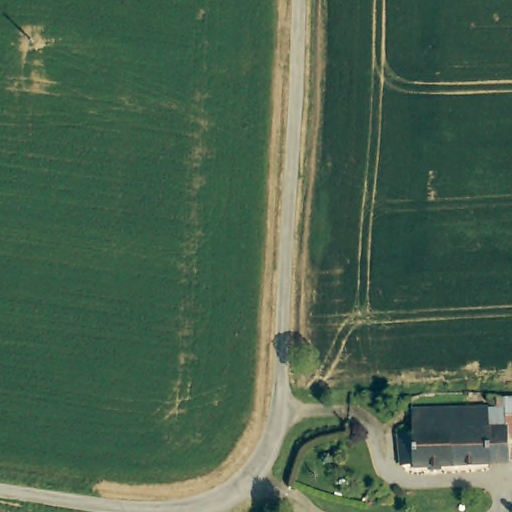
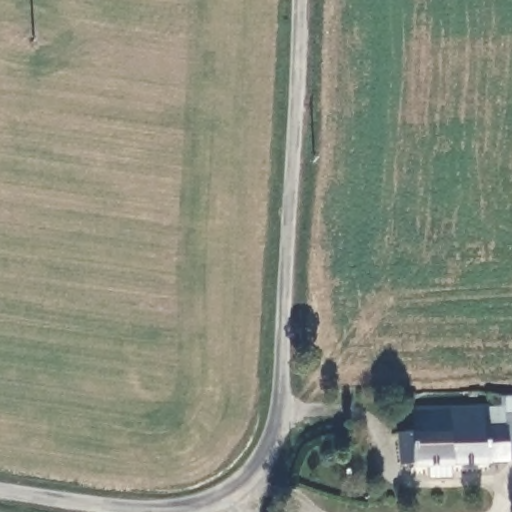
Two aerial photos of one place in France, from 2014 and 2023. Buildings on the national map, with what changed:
unchanged [(483,423),(505,423),(505,398),(512,398),(512,460),(410,463),(410,458),(392,458),(392,432),(407,432),(408,407),(483,407),(483,423)]

